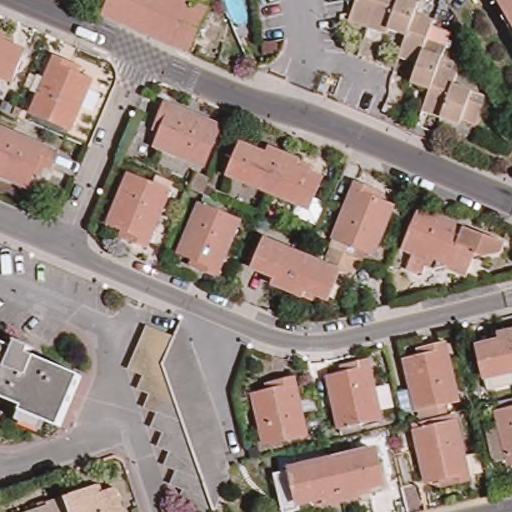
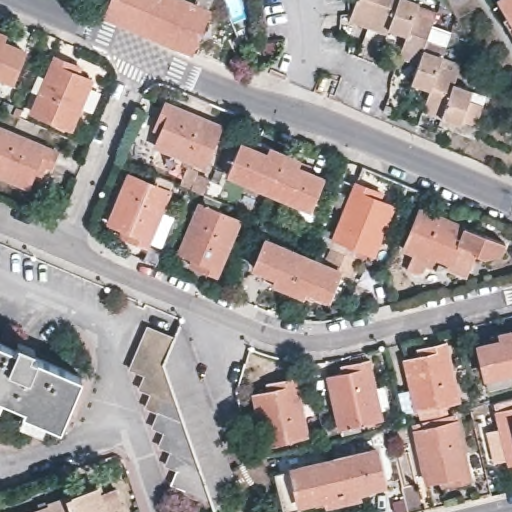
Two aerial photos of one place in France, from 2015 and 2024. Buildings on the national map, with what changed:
unchanged [(107,14),(113,0),(194,0),(197,1),(198,0),(215,0),(212,7),(215,9),(197,51),(107,14)]
unchanged [(444,116),(427,110),(434,90),(415,82),(423,62),(404,55),(412,34),(392,27),(390,33),(372,26),(352,19),(359,0),(405,0),(421,5),(419,13),(437,20),(430,40),(450,46),(442,69),(460,75),(457,83),(477,90),(473,99),(487,105),(480,124),(446,112),(444,116)]
unchanged [(505,0),(512,0),(512,13),(505,0)]
unchanged [(0,76),(0,36),(7,40),(18,44),(15,51),(27,56),(17,84),(0,76)]
unchanged [(81,67),(78,74),(90,79),(69,127),(31,110),(53,56),(70,62),(81,67)]
unchanged [(157,130),(161,119),(168,102),(225,125),(208,165),(158,144),(163,132),(157,130)]
unchanged [(0,173),(0,125),(53,147),(55,149),(59,151),(53,166),(48,164),(43,175),(37,171),(31,185),(0,173)]
unchanged [(273,196),(232,178),(245,148),(259,155),(262,147),(273,151),(289,157),(273,196)]
unchanged [(305,165),(315,170),(313,176),(326,182),(313,212),(273,196),(289,157),(305,165)]
unchanged [(207,177),(201,193),(190,189),(197,173),(207,177)]
unchanged [(114,221),(133,175),(157,184),(160,175),(177,181),(150,245),(133,239),(122,235),(125,226),(114,221)]
unchanged [(389,198),(387,203),(402,210),(382,259),(342,242),(365,187),(389,198)]
unchanged [(195,256),(183,251),(203,204),(243,220),(220,275),(203,267),(192,264),(195,256)]
unchanged [(512,238),(512,245),(503,272),(484,268),(477,278),(409,257),(425,212),(512,238)]
unchanged [(257,262),(268,234),(306,249),(292,285),(276,277),(267,274),(270,267),(257,262)]
unchanged [(308,291),(292,285),(306,249),(332,260),(338,244),(363,255),(356,270),(344,265),(332,293),(320,288),(318,295),(308,291)]
unchanged [(202,421),(216,427),(209,441),(223,448),(217,462),(230,469),(212,510),(213,512),(201,512),(178,503),(183,490),(172,485),(178,469),(165,463),(170,450),(159,445),(165,431),(153,426),(158,412),(145,406),(150,392),(140,387),(145,374),(130,367),(146,327),(172,337),(187,344),(180,359),(195,365),(188,379),(188,380),(200,385),(195,400),(208,406),(202,421)]
unchanged [(500,392),(497,380),(489,381),(482,351),(495,347),(493,340),(504,338),(512,336),(512,389),(500,392)]
unchanged [(22,345),(37,350),(33,358),(85,380),(64,431),(25,415),(27,411),(0,400),(0,344),(19,351),(22,345)]
unchanged [(410,363),(422,360),(420,353),(430,351),(448,347),(462,407),(422,415),(410,363)]
unchanged [(364,429),(347,433),(332,376),(345,374),(343,366),(354,365),(372,360),(385,418),(363,424),(364,429)]
unchanged [(269,383),(281,381),(297,377),(310,434),(271,443),(259,393),(271,390),(269,383)]
unchanged [(497,406),(512,403),(512,461),(497,406)]
unchanged [(432,486),(420,435),(417,425),(457,415),(460,425),(473,483),(455,487),(445,490),(444,483),(432,486)]
unchanged [(362,495),(346,498),(337,460),(380,449),(387,481),(372,485),(374,492),(362,495)]
unchanged [(407,450),(415,484),(400,487),(392,454),(407,450)]
unchanged [(302,501),(295,470),(337,460),(346,498),(330,502),(320,505),(318,497),(302,501)]
unchanged [(68,496),(100,485),(103,493),(120,487),(128,512),(74,512),(68,496)]
unchanged [(53,505),(52,502),(68,496),(74,512),(33,512),(53,505)]

